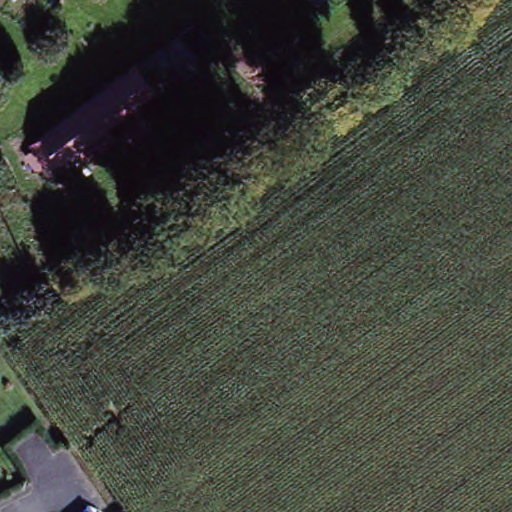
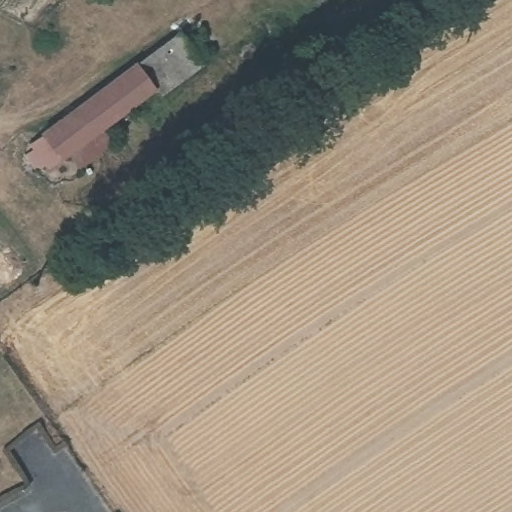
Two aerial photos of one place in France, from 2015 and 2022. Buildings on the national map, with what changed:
unchanged [(170,100),(146,66),(183,39),(184,41),(205,26),(224,54),(204,68),(207,72),(170,100)]
unchanged [(51,169),(36,147),(146,66),(170,100),(175,106),(150,124),(136,103),(111,122),(66,157),(51,169)]
unchanged [(111,122),(124,142),(79,177),(66,157),(111,122)]

